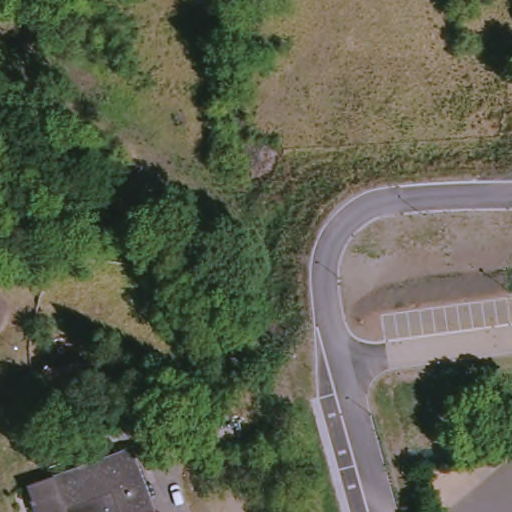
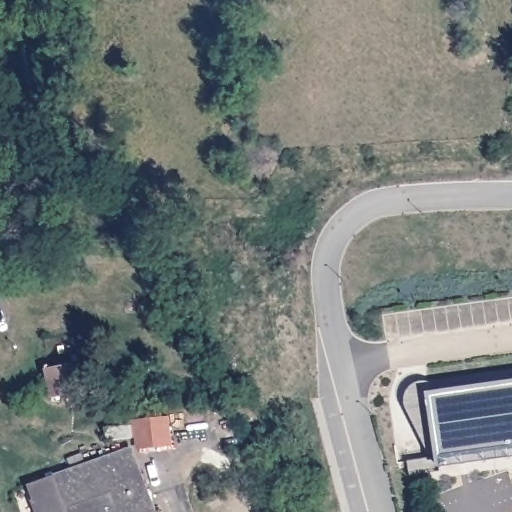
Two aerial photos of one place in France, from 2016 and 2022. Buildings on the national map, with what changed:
unchanged [(100,390),(56,397),(52,370),(95,363),(100,390)]
new [(442,471),(410,476),(408,463),(430,457),(405,405),(406,396),(412,386),(422,381),(432,383),(439,388),(442,392),(512,383),(512,444),(440,456),(442,471)]
unchanged [(142,454),(140,428),(173,425),(175,452),(142,454)]
unchanged [(113,446),(112,434),(137,432),(138,445),(113,446)]
unchanged [(42,508),(37,492),(136,456),(157,512),(42,512),(40,509),(42,508)]

